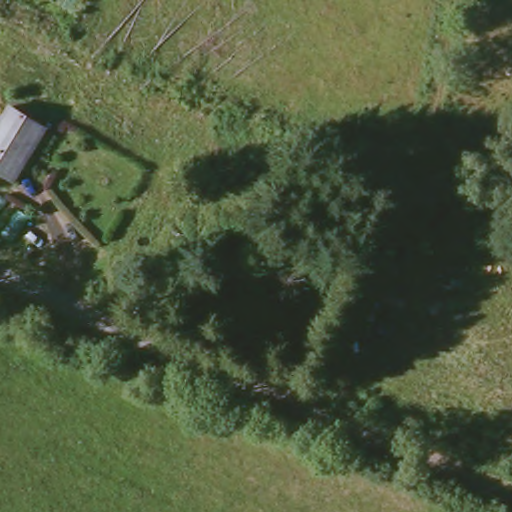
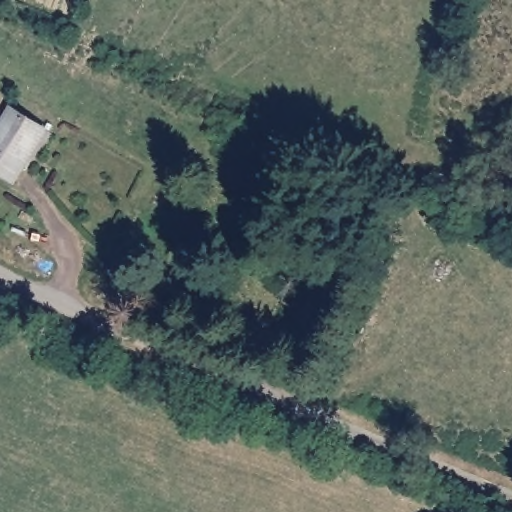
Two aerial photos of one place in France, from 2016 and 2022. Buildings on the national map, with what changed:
unchanged [(0,173),(0,121),(8,107),(42,128),(20,164),(25,166),(15,182),(0,173)]
unchanged [(25,166),(42,128),(47,130),(25,166)]

